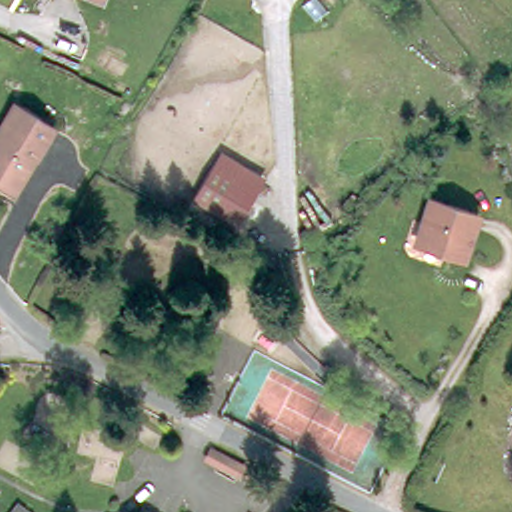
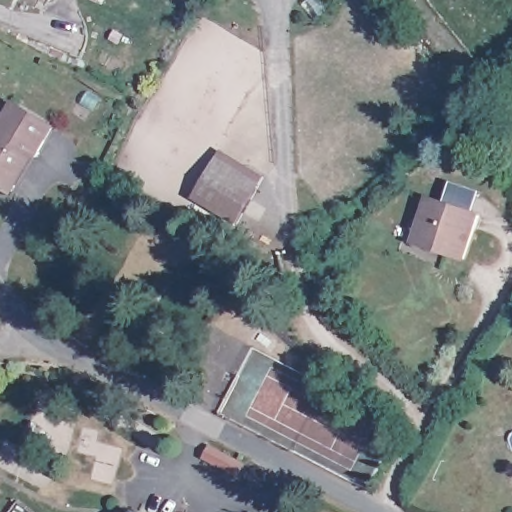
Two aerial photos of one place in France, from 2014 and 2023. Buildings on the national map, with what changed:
unchanged [(17,104),(48,120),(30,154),(25,151),(9,183),(0,178),(0,113),(7,99),(17,104)]
unchanged [(195,194),(217,160),(223,150),(267,178),(260,189),(238,222),(195,194)]
unchanged [(477,214),(471,230),(462,228),(454,249),(410,234),(422,194),(477,214)]
unchanged [(245,464),(239,474),(205,456),(212,446),(245,464)]

